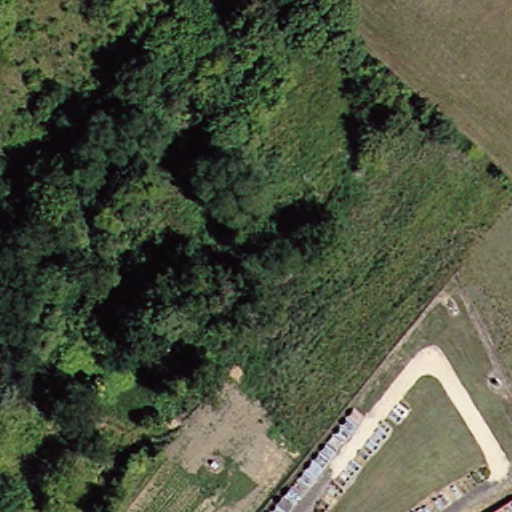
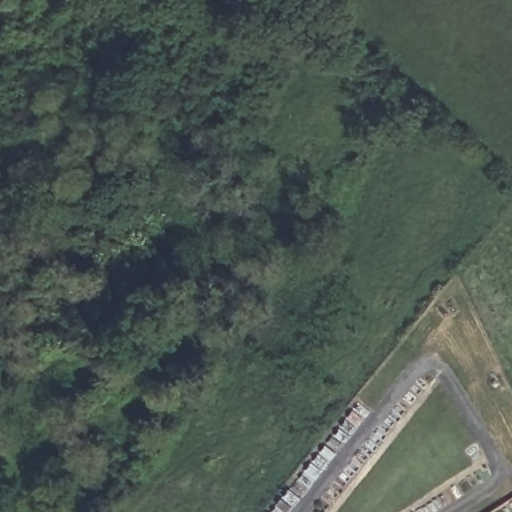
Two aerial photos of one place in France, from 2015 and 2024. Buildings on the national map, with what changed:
unchanged [(339,170),(362,134),(394,157),(373,192),(339,170)]

